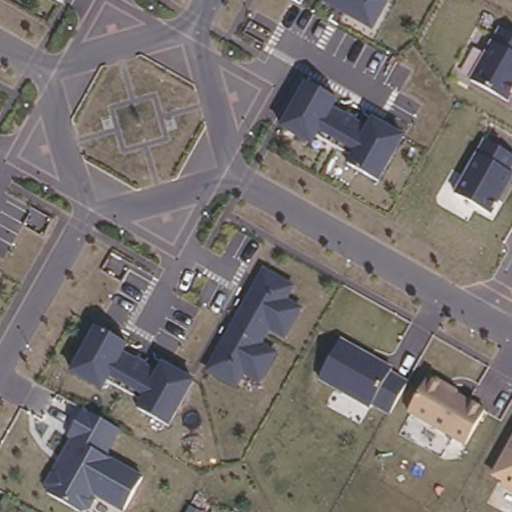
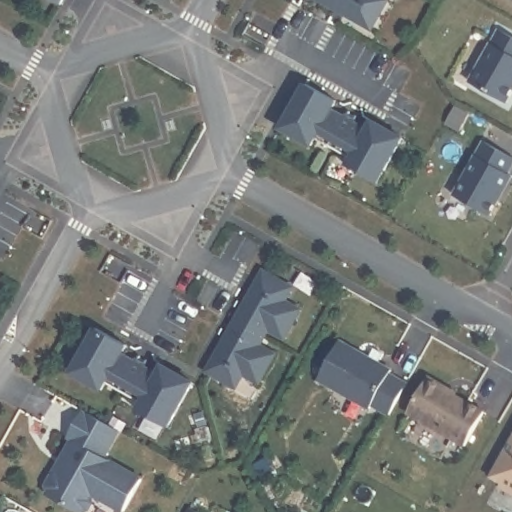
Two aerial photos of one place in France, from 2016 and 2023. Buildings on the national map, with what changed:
unchanged [(387,1),(372,30),(316,0),(386,0),(387,1)]
unchanged [(512,33),(512,96),(511,98),(473,77),(499,26),(512,33)]
unchanged [(334,107),(364,122),(367,112),(404,134),(379,178),(346,161),(350,155),(318,138),(314,145),(281,126),(305,78),(339,98),(334,107)]
unchanged [(484,138),(512,154),(512,168),(509,172),(512,174),(512,179),(491,215),(454,192),(484,138)]
unchanged [(296,284),(288,302),(297,310),(283,343),(267,335),(262,348),(273,353),(260,382),(243,374),(237,388),(206,370),(259,264),(296,284)]
unchanged [(128,342),(123,353),(159,370),(163,361),(193,378),(172,425),(136,409),(140,397),(105,379),(103,390),(69,372),(94,324),(128,342)]
unchanged [(405,375),(388,414),(320,376),(339,341),(405,375)]
unchanged [(481,406),(462,446),(406,414),(426,373),(481,406)]
unchanged [(107,457),(139,476),(122,512),(121,512),(93,498),(89,512),(87,512),(45,491),(69,436),(66,435),(80,409),(120,431),(107,457)]
unchanged [(490,479),(512,434),(512,491),(490,479)]

